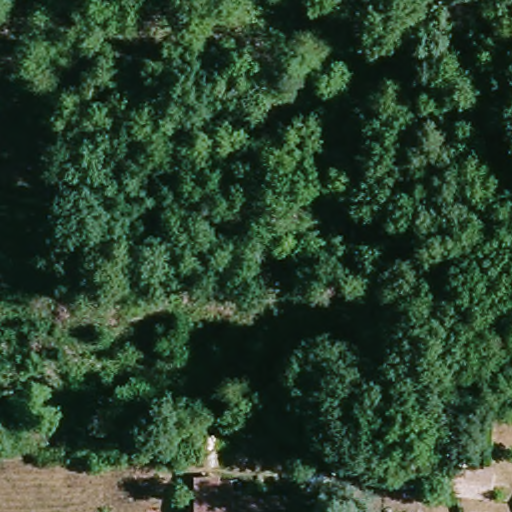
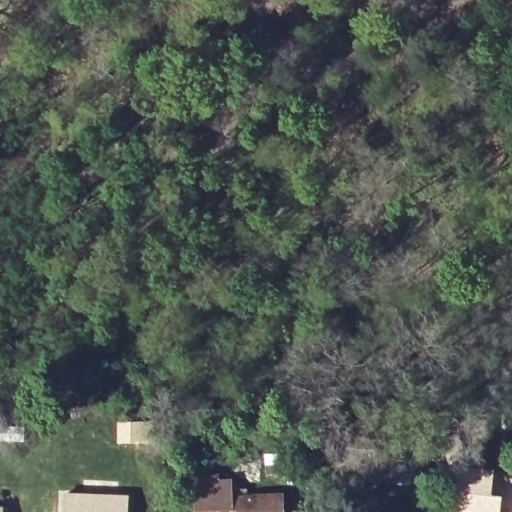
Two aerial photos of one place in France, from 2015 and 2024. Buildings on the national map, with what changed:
unchanged [(483,429),(481,461),(455,465),(450,438),(483,429)]
unchanged [(344,475),(345,448),(404,445),(403,471),(344,475)]
unchanged [(452,470),(496,470),(495,495),(459,496),(452,470)]
unchanged [(226,489),(229,512),(204,512),(202,493),(226,489)]
new [(129,496),(128,512),(61,512),(62,493),(129,496)]
unchanged [(293,512),(229,512),(293,503),(293,512)]
new [(2,512),(0,512),(0,507),(2,507),(2,512)]

